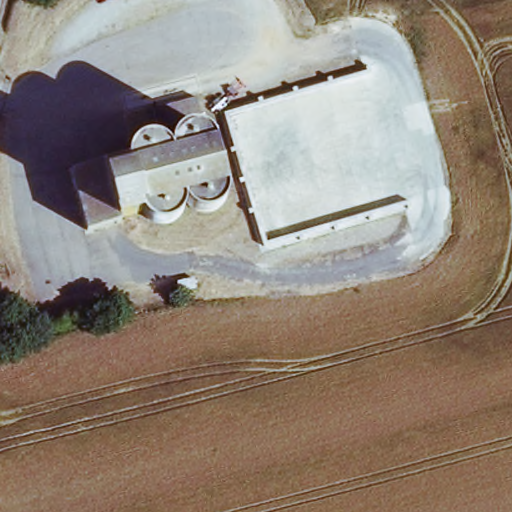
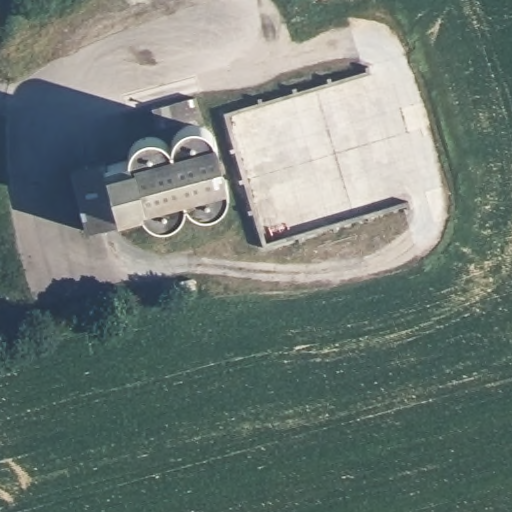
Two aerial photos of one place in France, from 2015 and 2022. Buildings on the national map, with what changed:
unchanged [(202,112),(159,124),(154,106),(197,94),(202,112)]
unchanged [(131,158),(134,147),(144,137),(154,135),(164,137),(171,144),(175,134),(184,124),(194,122),(214,132),(216,148),(208,165),(216,167),(226,173),(231,185),(229,196),(221,207),(209,211),(189,202),(184,211),(176,222),(162,225),(142,211),(124,217),(110,164),(131,158)]
unchanged [(109,160),(110,164),(124,217),(125,221),(89,231),(73,170),(109,160)]
unchanged [(202,292),(186,297),(183,285),(198,278),(202,292)]

